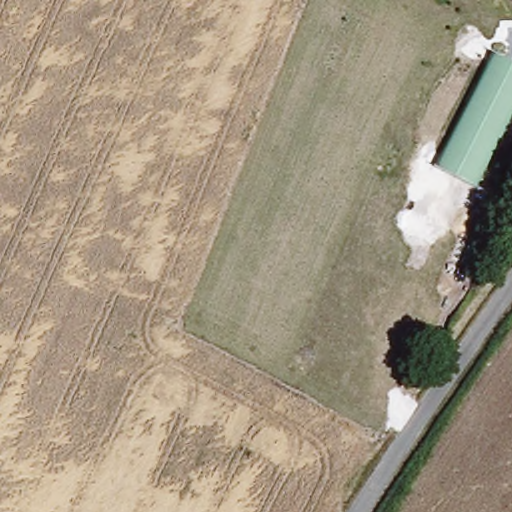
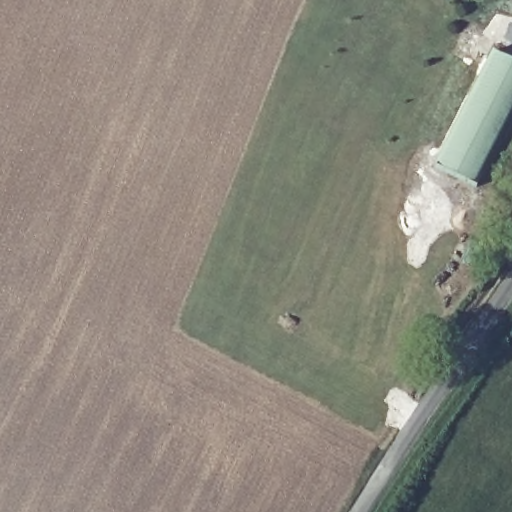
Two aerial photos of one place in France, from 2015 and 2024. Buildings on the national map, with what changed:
unchanged [(505,44),(512,48),(512,133),(511,134),(472,107),(505,44)]
unchanged [(472,107),(511,134),(487,180),(445,157),(472,107)]

